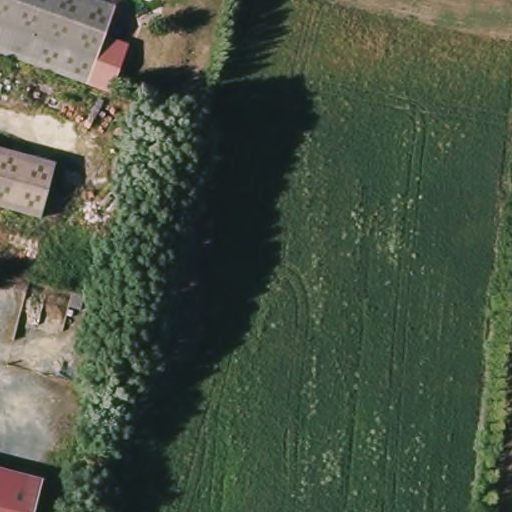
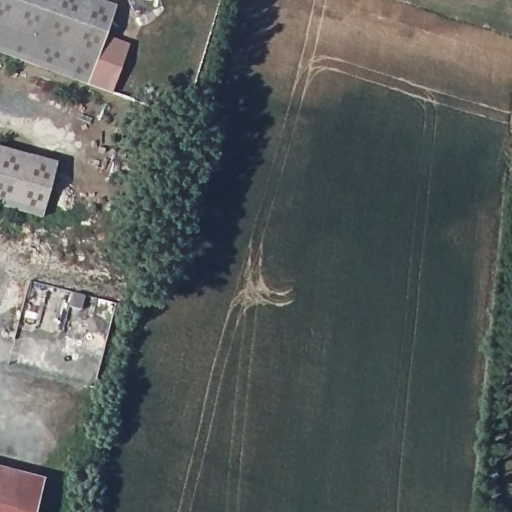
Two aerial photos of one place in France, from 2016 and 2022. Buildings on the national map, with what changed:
unchanged [(114,6),(105,34),(129,44),(110,92),(0,53),(0,0),(99,0),(114,6)]
unchanged [(54,163),(42,216),(0,206),(0,150),(54,163)]
unchanged [(39,512),(0,512),(0,463),(48,474),(39,512)]

